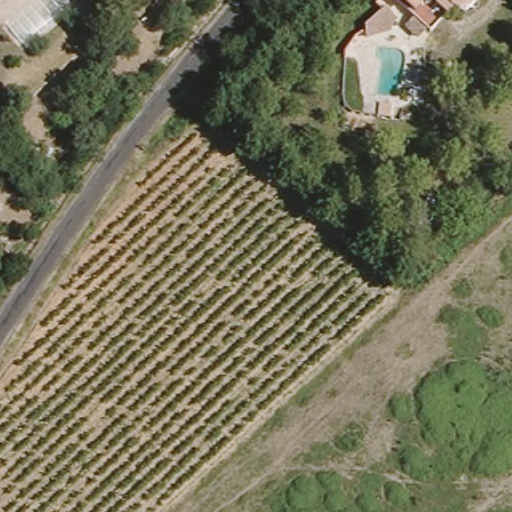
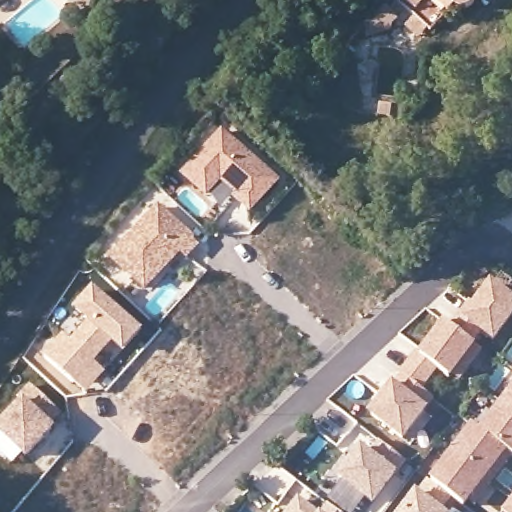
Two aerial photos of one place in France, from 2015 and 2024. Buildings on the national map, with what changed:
unchanged [(475,5),(472,8),(469,10),(467,11),(464,11),(460,11),(457,10),(455,8),(433,31),(416,16),(419,13),(405,0),(477,0),(477,2),(475,5)]
unchanged [(399,18),(395,21),(393,29),(366,36),(366,24),(388,6),(399,18)]
unchanged [(393,106),(392,118),(381,116),(383,105),(393,106)]
new [(281,181),(251,214),(220,183),(208,198),(181,174),(221,129),(281,181)]
new [(158,206),(198,243),(186,256),(180,250),(145,287),(111,256),(158,206)]
new [(394,384),(418,351),(422,354),(446,322),(453,327),(463,312),(468,315),(492,280),(512,296),(512,321),(494,344),(481,335),(474,345),(484,350),(462,379),(456,374),(452,380),(437,369),(423,390),(437,401),(430,409),(405,441),(370,415),(394,384)]
new [(86,394),(75,385),(43,358),(61,336),(70,343),(87,322),(74,311),(92,291),(140,333),(124,351),(112,342),(93,363),(105,373),(86,394)]
new [(0,426),(23,402),(20,398),(32,385),(60,411),(49,424),(53,427),(27,455),(16,466),(0,451),(0,426)]
new [(503,402),(512,389),(512,409),(503,402)]
new [(463,504),(451,495),(431,480),(453,452),(474,424),(482,430),(503,402),(512,409),(512,454),(491,481),(475,503),(468,498),(463,504)]
new [(405,461),(374,506),(336,481),(361,446),(369,453),(379,441),(405,461)]
new [(428,477),(431,480),(451,495),(439,510),(442,512),(401,512),(428,477)]
new [(512,495),(512,512),(507,512),(502,509),(512,496),(512,495)]
new [(300,497),(318,512),(287,512),(300,497)]
new [(338,512),(320,512),(327,505),(338,512)]

